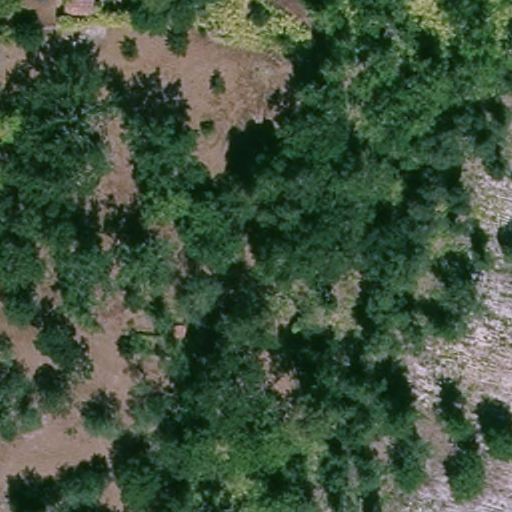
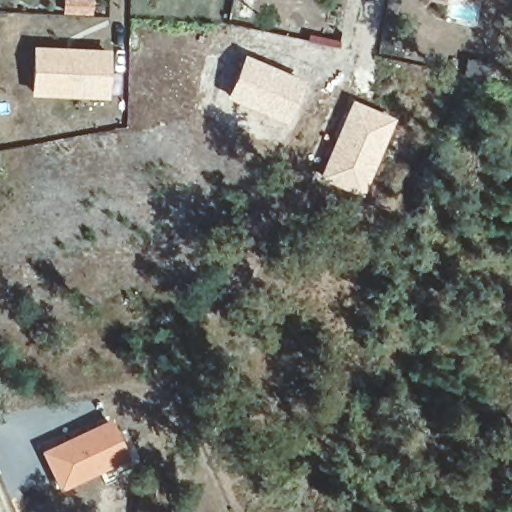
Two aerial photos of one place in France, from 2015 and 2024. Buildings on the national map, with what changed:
new [(63,0),(95,0),(95,14),(63,13),(63,0)]
new [(32,44),(111,48),(107,98),(30,94),(32,44)]
new [(244,53),(303,77),(284,123),(226,96),(244,53)]
new [(468,58),(499,64),(497,82),(465,78),(468,58)]
new [(351,98),(398,118),(363,198),(318,180),(351,98)]
new [(114,416),(133,463),(101,475),(99,473),(59,491),(40,450),(114,416)]
unchanged [(179,512),(155,512),(158,490),(181,493),(179,512)]

